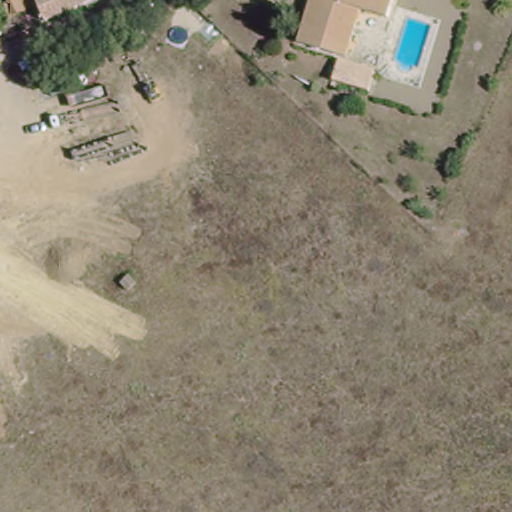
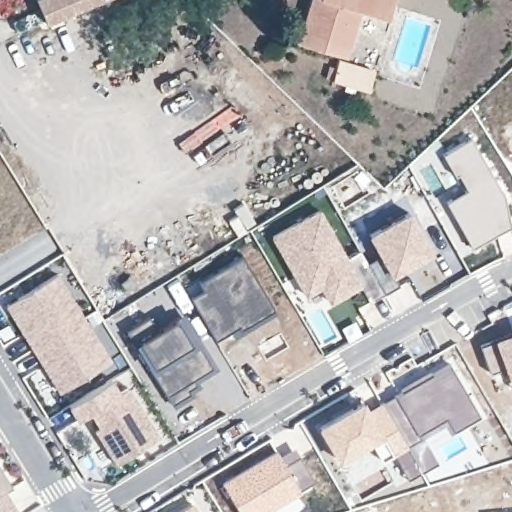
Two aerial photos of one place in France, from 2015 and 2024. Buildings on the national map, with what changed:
unchanged [(45,22),(37,5),(0,21),(0,5),(11,0),(98,0),(73,10),(45,22)]
unchanged [(381,0),(377,13),(365,10),(351,7),(337,55),(290,42),(301,0),(381,0)]
unchanged [(350,60),(378,68),(373,90),(335,78),(337,55),(351,7),(365,10),(350,60)]
new [(504,196),(510,227),(475,247),(450,201),(468,191),(447,153),(472,141),(504,196)]
new [(320,207),(347,256),(360,249),(366,262),(383,293),(370,302),(362,286),(329,303),(320,288),(305,297),(269,234),(320,207)]
new [(369,233),(412,209),(436,252),(393,276),(398,285),(386,291),(370,262),(382,255),(369,233)]
new [(275,308),(240,328),(238,325),(215,337),(190,296),(202,288),(197,278),(241,251),(275,308)]
new [(52,275),(79,318),(30,348),(3,306),(52,275)]
new [(217,368),(199,380),(202,385),(192,391),(193,394),(174,407),(153,372),(135,341),(125,328),(150,313),(160,326),(173,317),(185,313),(217,368)]
new [(79,318),(106,360),(57,391),(30,348),(79,318)]
new [(512,330),(512,381),(510,382),(502,366),(489,371),(480,345),(492,339),(512,330)]
new [(420,374),(450,361),(482,416),(452,433),(444,422),(418,438),(408,445),(382,400),(420,374)]
new [(87,410),(74,418),(65,404),(108,377),(117,391),(124,386),(155,436),(113,462),(92,428),(87,420),(91,417),(87,410)]
new [(437,461),(408,477),(393,452),(380,457),(370,439),(381,433),(367,409),(382,400),(408,445),(418,438),(422,436),(437,461)]
new [(342,455),(325,426),(364,403),(381,433),(342,455)]
new [(280,454),(294,447),(313,481),(300,490),(263,512),(239,512),(220,481),(277,449),(280,454)]
new [(0,470),(10,487),(2,492),(14,512),(0,512),(0,470)]
new [(193,507),(197,512),(185,512),(193,507)]

